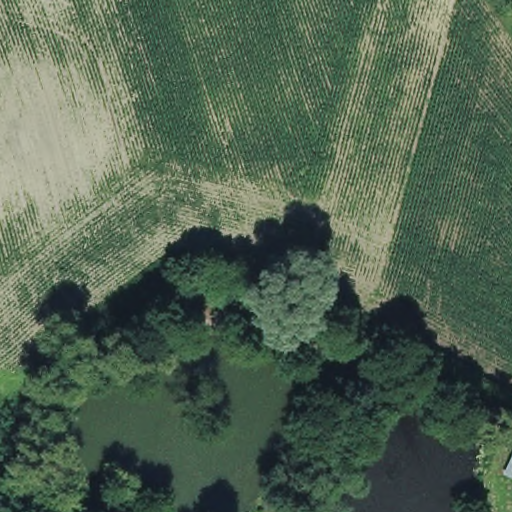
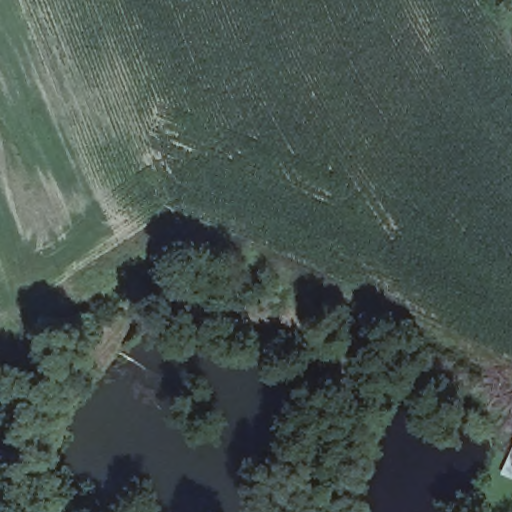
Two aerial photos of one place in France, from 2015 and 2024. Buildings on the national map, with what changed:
unchanged [(352,394),(366,404),(351,430),(336,418),(352,394)]

